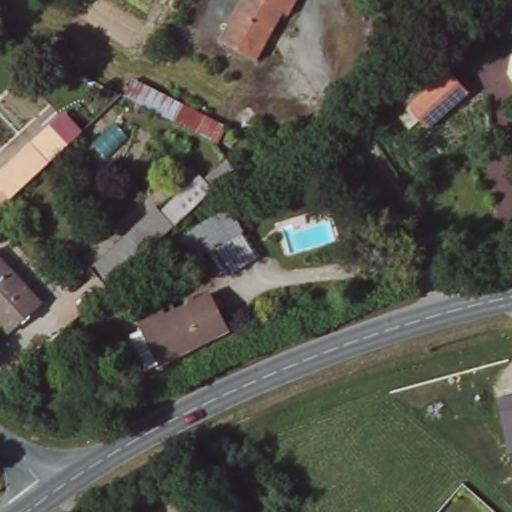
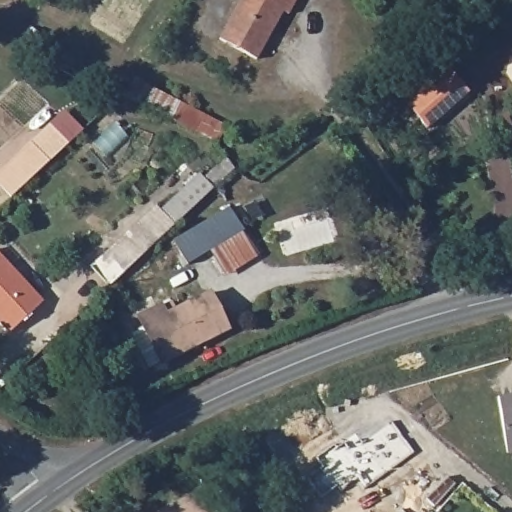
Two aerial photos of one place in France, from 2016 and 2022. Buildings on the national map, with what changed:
unchanged [(283,19),(279,16),(251,59),(215,36),(237,0),(294,0),(283,19)]
unchanged [(475,96),(465,105),(433,133),(412,111),(400,98),(436,67),(447,79),(451,75),(453,73),(475,96)]
unchanged [(131,79),(220,124),(213,141),(143,107),(131,101),(122,97),(131,79)]
unchanged [(11,197),(0,186),(0,170),(49,124),(67,144),(61,150),(11,197)]
unchanged [(90,269),(155,204),(159,208),(197,170),(206,180),(232,155),(238,166),(232,172),(196,207),(161,241),(112,288),(105,281),(90,269)]
unchanged [(185,263),(174,240),(228,209),(240,230),(208,250),(185,263)]
unchanged [(240,230),(255,258),(221,274),(208,250),(240,230)]
unchanged [(12,334),(0,322),(0,263),(41,305),(12,334)]
unchanged [(161,365),(157,357),(138,367),(128,343),(146,335),(139,320),(161,307),(163,310),(172,306),(176,313),(211,297),(231,332),(161,365)]
unchanged [(508,453),(500,397),(512,395),(512,453),(508,453)]

